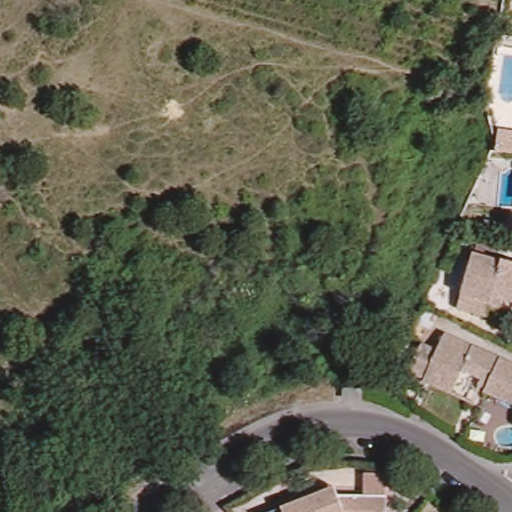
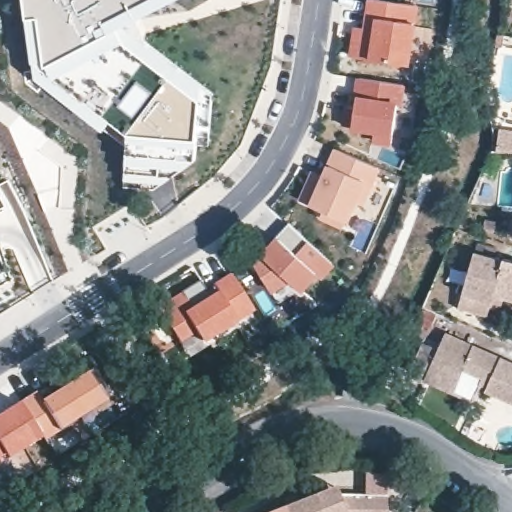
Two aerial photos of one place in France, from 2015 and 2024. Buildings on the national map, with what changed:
new [(127,147),(35,78),(26,18),(24,0),(172,0),(124,24),(203,85),(214,92),(211,134),(197,133),(195,158),(154,190),(124,187),(127,147)]
new [(415,24),(410,64),(370,58),(350,54),(354,25),(364,27),(368,0),(375,0),(418,6),(415,24)]
unchanged [(497,34),(496,46),(489,45),(490,33),(497,34)]
new [(398,104),(394,128),(391,144),(375,142),(375,131),(353,127),(358,96),(354,96),(357,78),(405,85),(403,105),(398,104)]
new [(358,201),(349,220),(345,219),(342,228),(321,217),(321,208),(311,202),(301,197),(312,170),(323,177),(327,165),(335,148),(380,168),(364,205),(358,201)]
new [(0,208),(0,206),(1,207),(0,208)]
new [(319,273),(303,290),(291,278),(273,291),(254,260),(262,252),(277,237),(289,223),(334,263),(324,277),(319,273)]
unchanged [(507,295),(503,307),(492,304),(490,313),(462,305),(477,248),(506,255),(507,253),(512,254),(512,296),(507,295)]
new [(6,279),(0,283),(0,259),(3,268),(6,279)]
new [(234,319),(238,324),(190,356),(160,308),(200,280),(207,290),(232,276),(252,308),(234,319)]
unchanged [(485,381),(466,373),(460,387),(455,398),(425,384),(427,381),(413,374),(425,345),(440,352),(448,335),(512,364),(512,404),(489,394),(490,392),(482,387),(485,381)]
new [(45,439),(43,436),(23,405),(21,401),(36,391),(42,398),(88,370),(107,399),(60,429),(45,439)]
unchanged [(361,386),(361,395),(340,394),(340,386),(361,386)]
new [(0,453),(0,419),(23,405),(43,436),(8,457),(4,451),(0,453)]
unchanged [(310,484),(380,489),(379,512),(257,512),(254,505),(310,484)]

